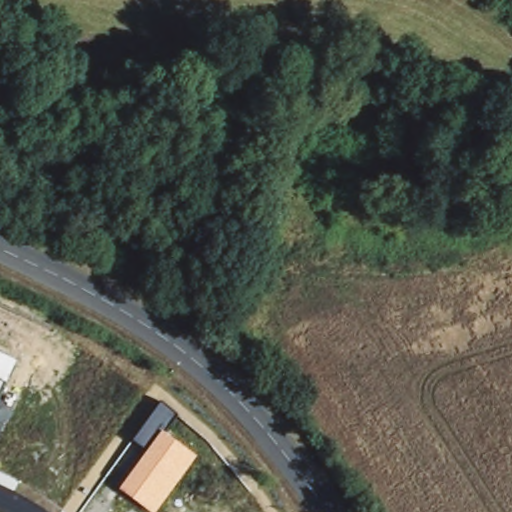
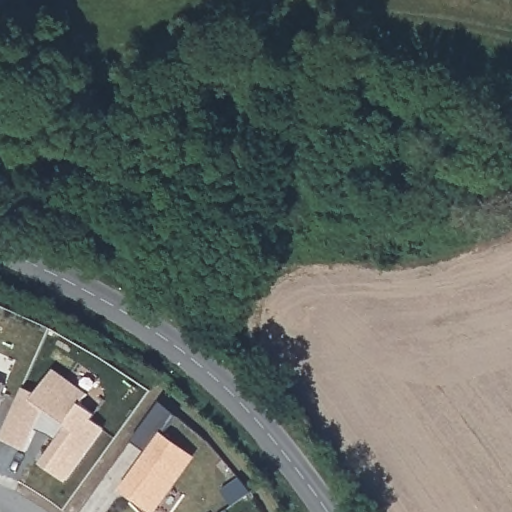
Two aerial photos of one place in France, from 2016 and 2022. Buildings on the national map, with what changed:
new [(31,453),(5,440),(29,389),(43,396),(60,372),(93,397),(86,406),(100,417),(96,422),(109,431),(69,484),(44,466),(61,444),(53,437),(41,432),(31,453)]
unchanged [(0,392),(0,380),(4,382),(0,392)]
unchanged [(177,414),(164,433),(198,456),(156,512),(150,512),(119,490),(146,450),(133,440),(160,403),(177,414)]

